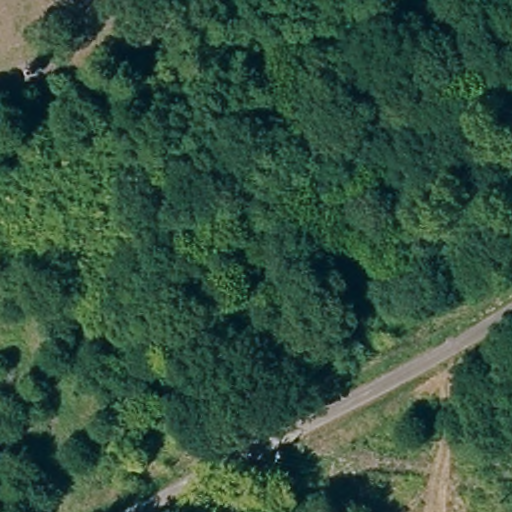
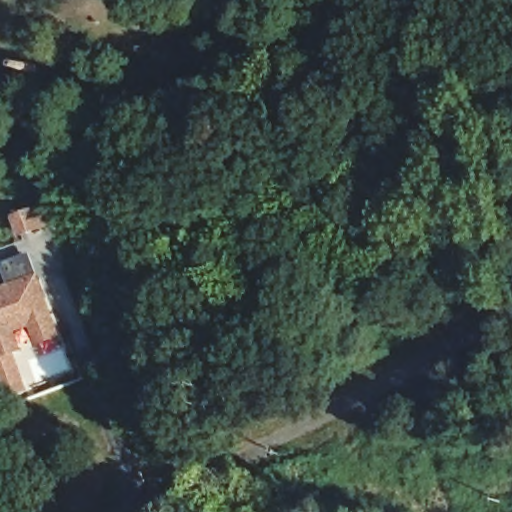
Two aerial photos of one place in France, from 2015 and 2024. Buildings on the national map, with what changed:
new [(45,210),(51,227),(41,230),(23,237),(17,220),(35,213),(45,210)]
new [(62,337),(38,346),(32,327),(18,331),(24,350),(17,353),(29,388),(4,395),(0,385),(0,287),(10,283),(2,263),(33,253),(62,337)]

